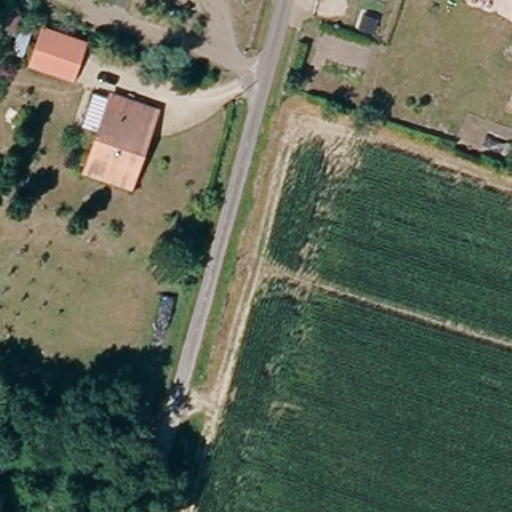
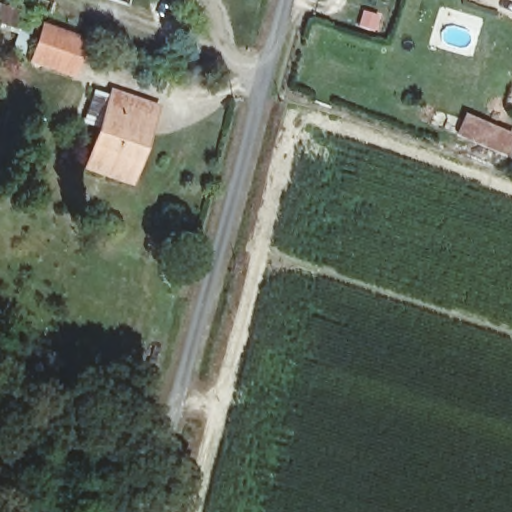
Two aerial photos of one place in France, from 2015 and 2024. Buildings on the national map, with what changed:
unchanged [(71,83),(62,79),(30,67),(45,32),(77,45),(86,49),(71,83)]
unchanged [(128,170),(137,173),(130,192),(85,176),(97,142),(77,134),(94,92),(158,118),(150,137),(141,134),(128,170)]
new [(464,114),(512,135),(512,143),(511,145),(512,146),(512,162),(454,137),(464,114)]

